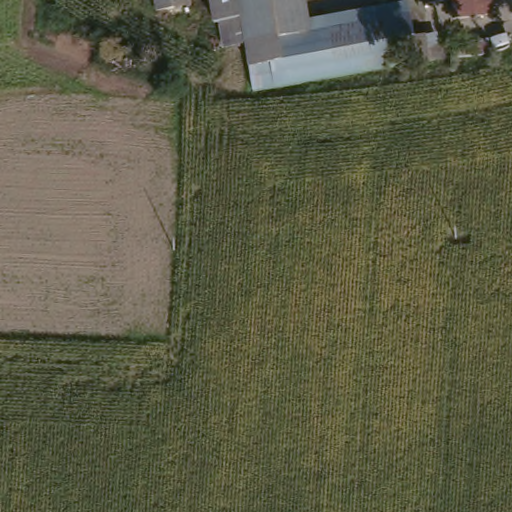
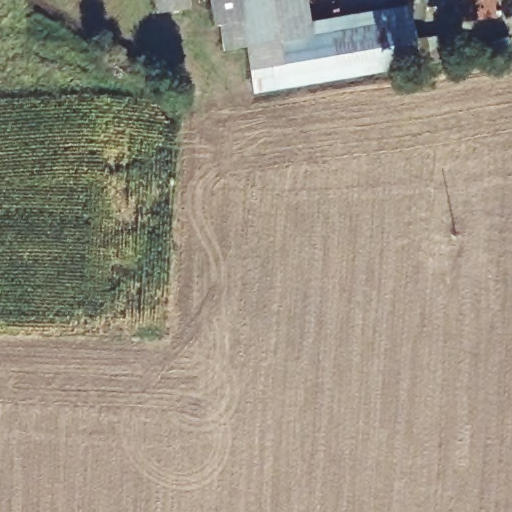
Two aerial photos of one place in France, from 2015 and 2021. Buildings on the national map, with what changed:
unchanged [(190,0),(192,9),(159,13),(157,0),(190,0)]
unchanged [(257,94),(248,44),(224,51),(215,0),(308,0),(312,20),(409,5),(417,70),(257,94)]
unchanged [(430,0),(449,0),(430,2),(430,0)]
unchanged [(460,16),(458,0),(500,0),(501,13),(460,16)]

